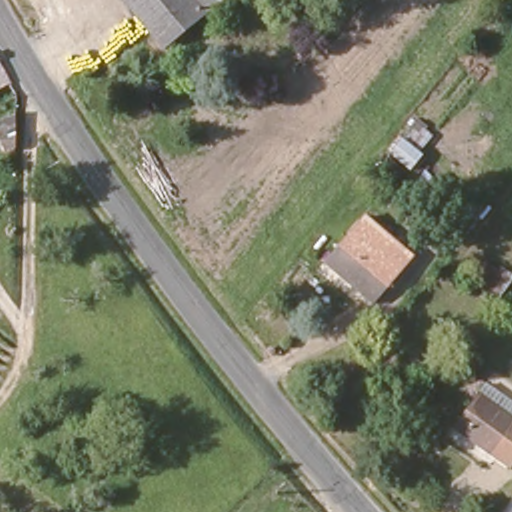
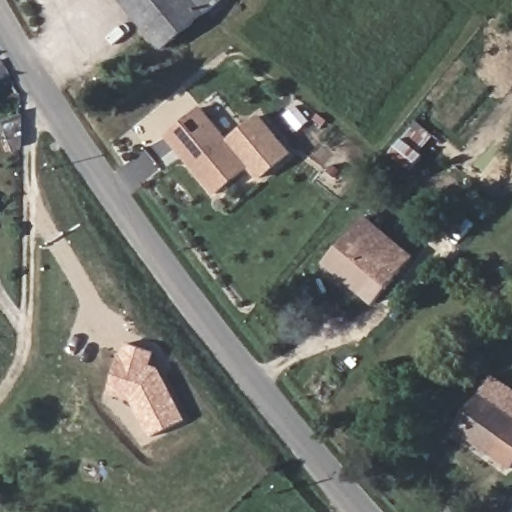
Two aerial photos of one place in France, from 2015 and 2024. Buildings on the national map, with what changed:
unchanged [(123,0),(224,0),(162,47),(156,40),(123,0)]
new [(251,167),(216,196),(167,136),(204,106),(231,139),(260,116),(292,154),(261,179),(251,167)]
unchanged [(398,185),(380,171),(392,157),(409,171),(398,185)]
new [(353,230),(366,214),(414,255),(402,268),(353,230)]
unchanged [(402,268),(375,302),(326,264),(353,230),(402,268)]
new [(120,356),(126,342),(156,353),(152,365),(161,368),(185,420),(148,437),(131,401),(107,392),(120,356)]
unchanged [(484,384),(512,403),(512,476),(451,432),(484,384)]

